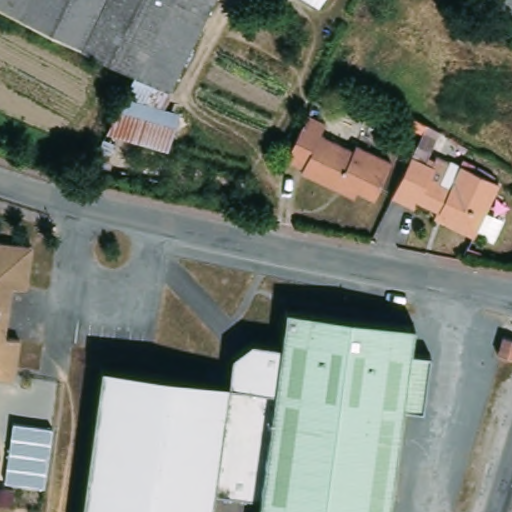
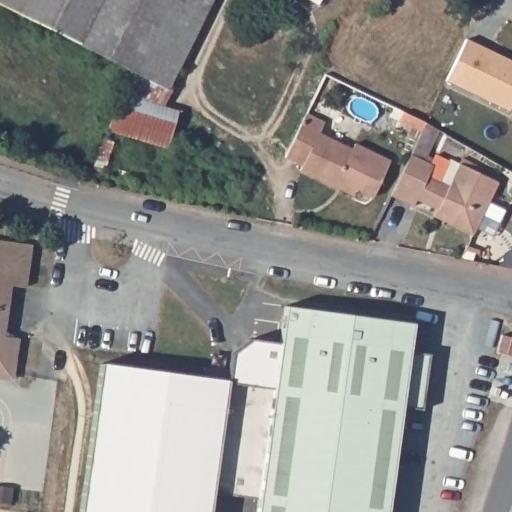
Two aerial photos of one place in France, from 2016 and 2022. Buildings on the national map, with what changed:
unchanged [(0,9),(0,0),(170,0),(136,74),(129,71),(0,9)]
unchanged [(170,0),(205,0),(163,88),(136,74),(170,0)]
unchanged [(312,0),(320,0),(317,3),(312,0)]
new [(512,61),(512,107),(510,110),(447,79),(465,39),(512,61)]
unchanged [(163,88),(154,106),(172,114),(159,140),(111,130),(104,128),(129,71),(136,74),(163,88)]
unchanged [(301,113),(318,121),(314,131),(348,148),(352,143),(388,157),(371,196),(336,179),(332,187),(296,172),(298,167),(280,159),(301,113)]
unchanged [(413,139),(423,119),(436,125),(427,145),(421,159),(430,163),(434,153),(448,159),(439,179),(449,184),(459,161),(498,178),(474,233),(444,219),(444,210),(437,207),(417,199),(414,205),(389,194),(407,153),(413,139)]
unchanged [(7,284),(2,339),(15,342),(10,381),(0,379),(0,242),(28,245),(21,287),(7,284)]
unchanged [(390,512),(259,512),(260,500),(276,344),(280,307),(410,320),(407,351),(401,404),(390,512)]
unchanged [(506,359),(487,354),(493,337),(512,340),(506,359)]
unchanged [(225,383),(228,356),(247,340),(276,344),(260,500),(214,495),(212,512),(82,512),(96,369),(225,383)]
unchanged [(407,351),(427,353),(421,407),(401,404),(407,351)]

